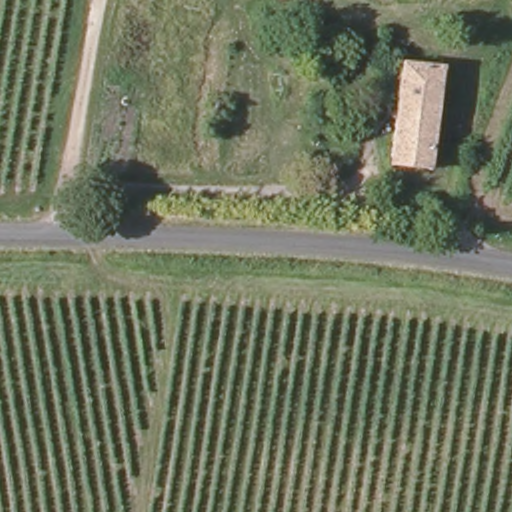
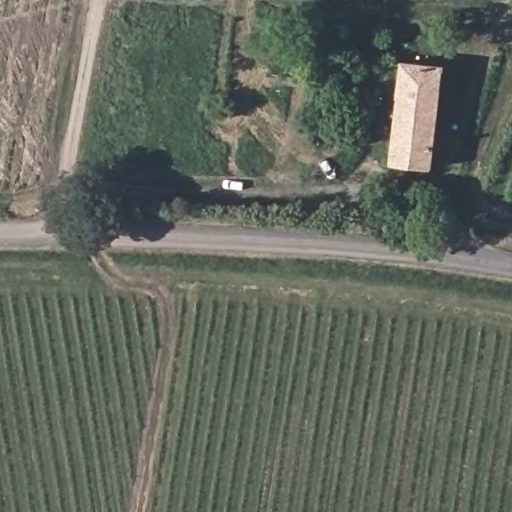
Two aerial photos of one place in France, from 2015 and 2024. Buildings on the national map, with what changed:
unchanged [(448,65),(435,175),(388,165),(400,64),(448,65)]

